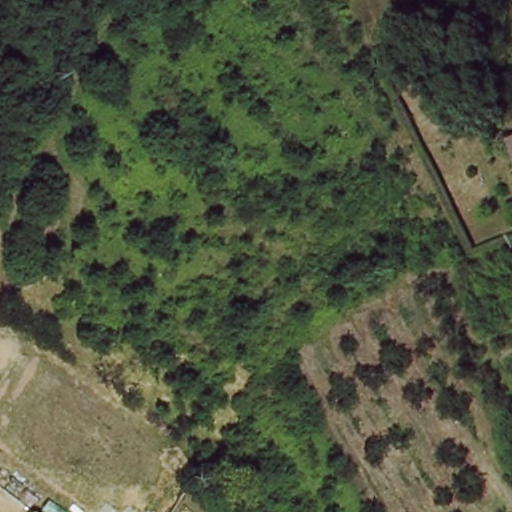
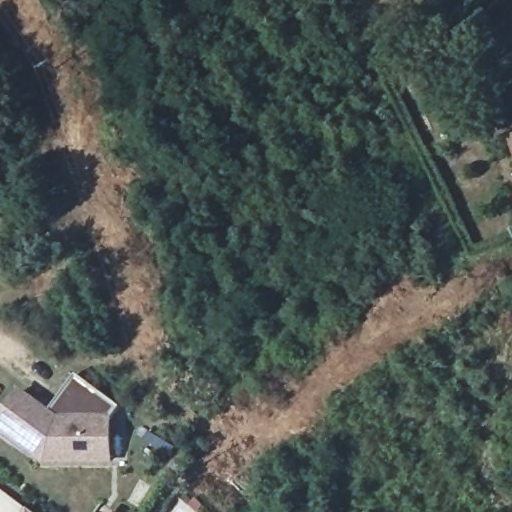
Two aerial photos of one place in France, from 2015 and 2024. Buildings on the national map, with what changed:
new [(43,465),(0,433),(0,416),(20,391),(51,412),(76,376),(120,408),(113,416),(113,463),(43,465)]
unchanged [(32,512),(26,512),(28,509),(32,512)]
new [(113,512),(109,512),(111,510),(113,512)]

